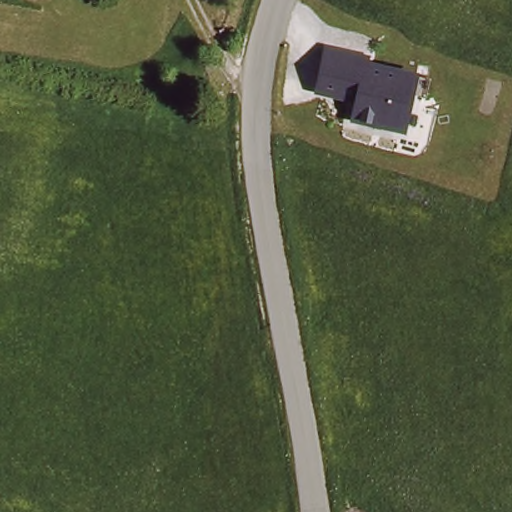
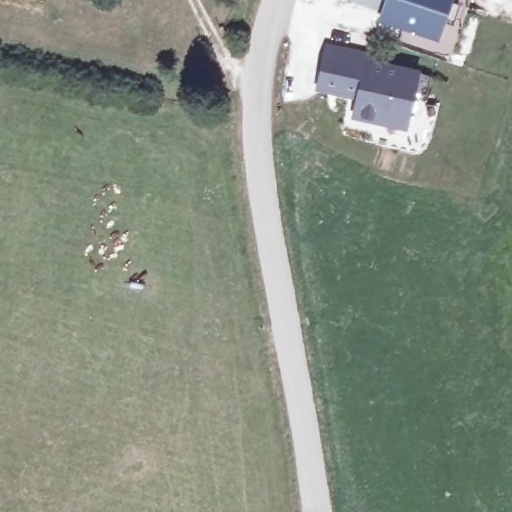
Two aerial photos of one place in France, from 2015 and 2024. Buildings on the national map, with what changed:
new [(348,4),(349,0),(452,0),(438,42),(377,22),(380,14),(348,4)]
unchanged [(357,57),(356,63),(414,77),(410,96),(402,101),(396,127),(353,117),(358,97),(318,87),(327,50),(357,57)]

